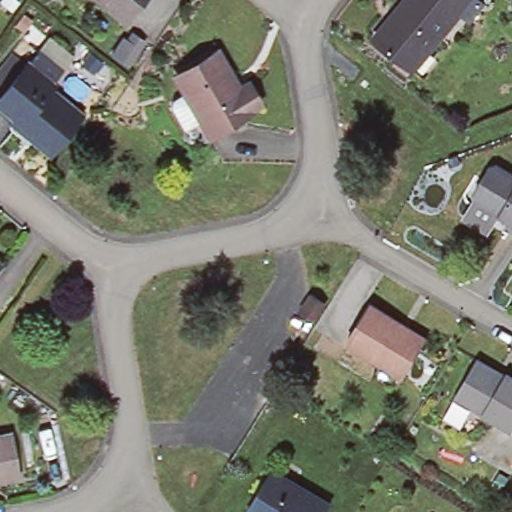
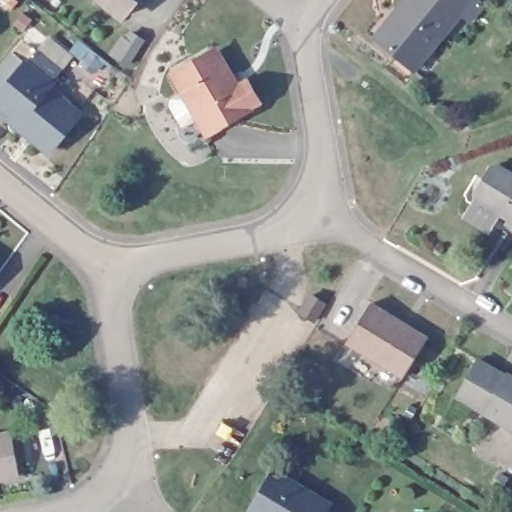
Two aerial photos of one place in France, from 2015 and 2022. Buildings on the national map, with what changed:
unchanged [(107,0),(134,0),(123,13),(107,0)]
unchanged [(397,7),(403,0),(466,0),(439,33),(444,36),(417,69),(378,37),(399,10),(397,7)]
unchanged [(144,37),(128,60),(111,49),(122,33),(126,36),(131,28),(144,37)]
unchanged [(23,72),(33,59),(44,45),(65,62),(53,76),(43,89),(45,91),(41,96),(73,122),(48,154),(15,128),(18,124),(0,110),(0,94),(19,69),(23,72)]
unchanged [(176,107),(178,100),(190,93),(181,78),(221,53),(236,77),(241,74),(248,85),(261,105),(215,133),(206,119),(190,129),(176,107)]
unchanged [(472,190),(488,164),(496,162),(512,173),(512,221),(474,198),(472,195),(472,190)]
unchanged [(313,285),(326,294),(314,311),(301,302),(313,285)]
unchanged [(344,341),(366,303),(396,321),(394,324),(403,329),(405,326),(424,337),(401,375),(397,373),(389,385),(371,373),(379,362),(344,341)]
unchanged [(512,426),(510,429),(453,395),(473,361),(492,372),(499,377),(502,373),(512,379),(512,426)]
unchanged [(10,428),(18,470),(0,474),(0,430),(10,428)]
unchanged [(276,468),(334,502),(327,512),(256,512),(250,508),(253,503),(276,468)]

